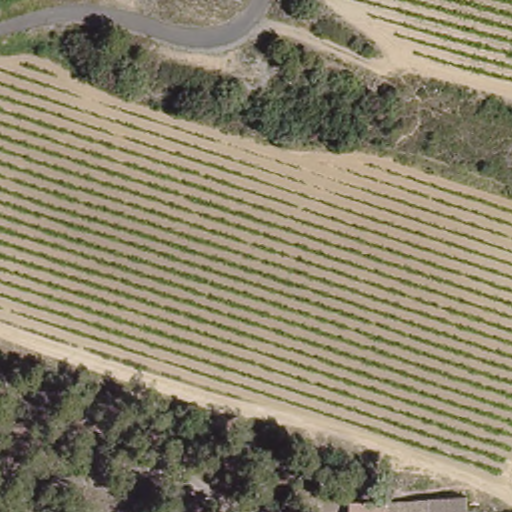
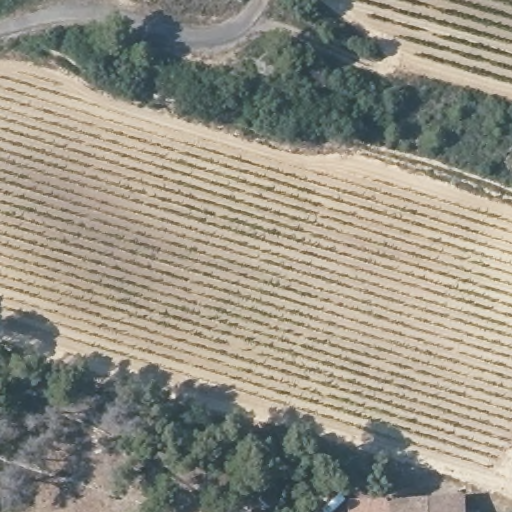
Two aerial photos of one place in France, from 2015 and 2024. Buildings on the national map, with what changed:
unchanged [(388,496),(407,496),(465,496),(463,512),(386,512),(388,496)]

